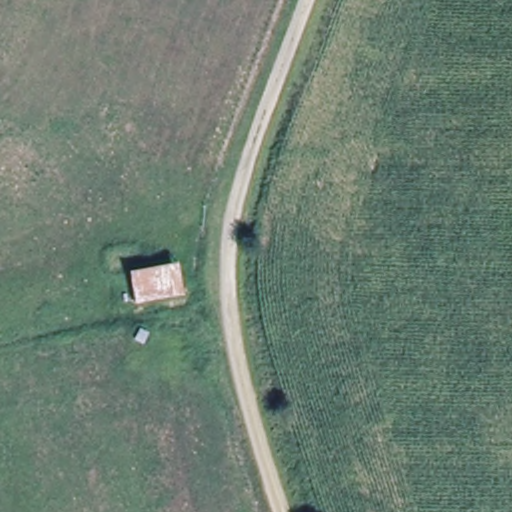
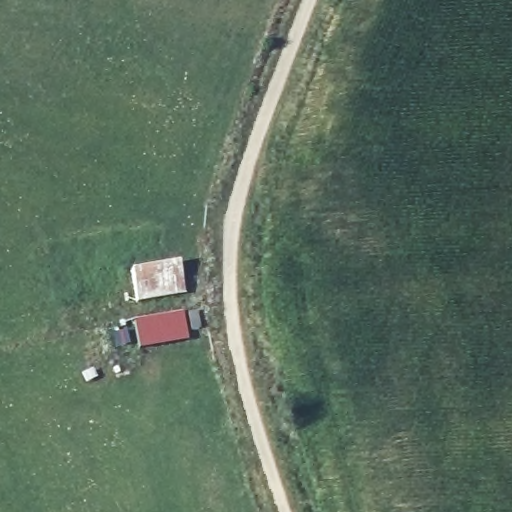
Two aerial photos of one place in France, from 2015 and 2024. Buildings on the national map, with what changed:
unchanged [(184,292),(140,300),(137,272),(178,264),(184,292)]
new [(183,312),(188,341),(139,349),(134,321),(183,312)]

